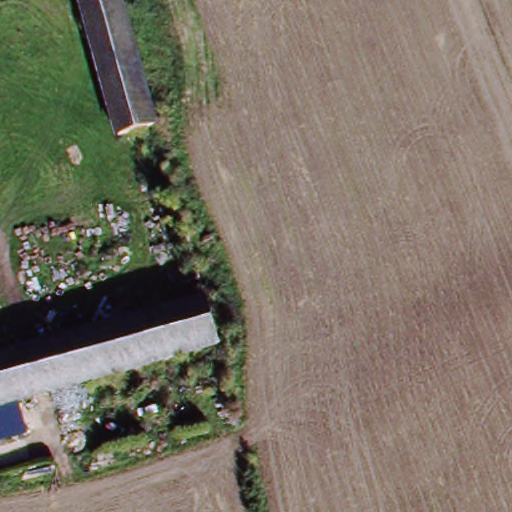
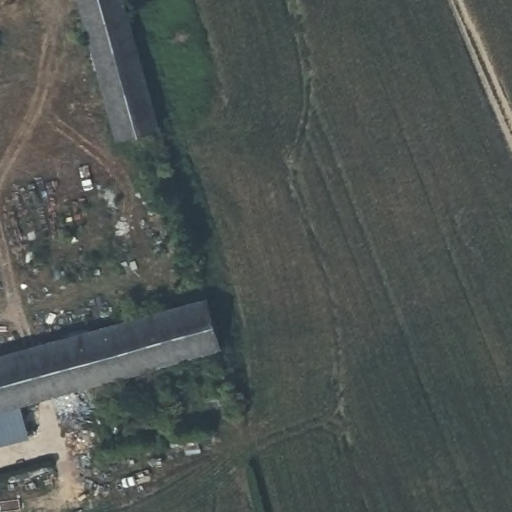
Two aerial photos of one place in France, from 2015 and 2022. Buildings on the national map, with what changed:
unchanged [(119,0),(121,8),(79,19),(74,0),(119,0)]
unchanged [(154,134),(113,146),(79,19),(121,8),(154,134)]
unchanged [(0,357),(206,299),(218,344),(0,406),(0,357)]

